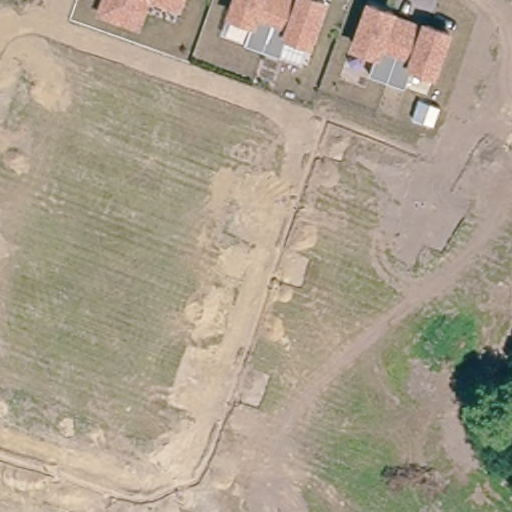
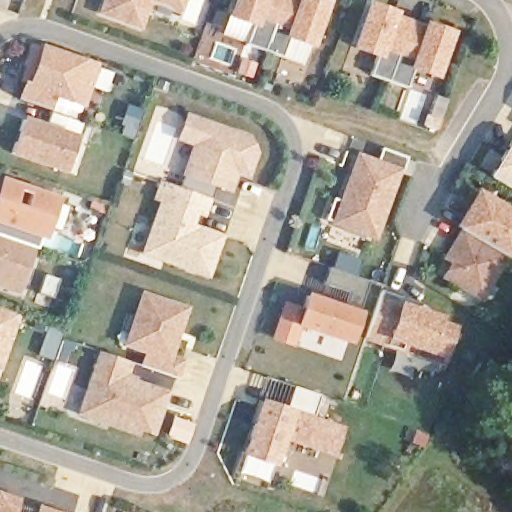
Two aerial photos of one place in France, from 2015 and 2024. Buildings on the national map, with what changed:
unchanged [(150,0),(140,29),(100,16),(106,0),(185,0),(181,10),(167,6),(150,0)]
unchanged [(271,29),(264,49),(224,33),(234,0),(257,0),(250,22),(271,29)]
unchanged [(330,48),(308,41),(302,61),(283,55),(264,49),(271,29),(250,22),(257,0),(326,0),(345,6),(330,48)]
unchanged [(412,16),(430,21),(452,29),(438,72),(417,65),(410,85),(392,79),(372,72),(379,52),(357,45),(372,2),(395,10),(412,16)]
new [(25,83),(30,85),(43,47),(96,65),(82,104),(54,94),(49,110),(20,100),(25,83)]
new [(24,119),(45,127),(50,110),(85,122),(80,139),(74,137),(62,170),(12,152),(24,119)]
new [(195,144),(180,138),(187,116),(249,137),(255,153),(247,175),(236,171),(229,189),(217,185),(212,199),(209,198),(180,188),(195,144)]
new [(512,137),(512,193),(487,177),(512,137)]
new [(342,201),(358,155),(377,162),(382,147),(407,157),(402,172),(398,171),(374,237),(326,219),(331,203),(333,198),(342,201)]
new [(162,200),(156,197),(162,181),(180,188),(209,198),(204,214),(189,209),(184,223),(222,237),(207,275),(144,252),(162,200)]
new [(3,182),(54,200),(37,249),(32,247),(0,236),(0,191),(3,182)]
new [(503,256),(481,301),(441,277),(448,264),(442,259),(455,226),(477,188),(512,210),(512,261),(503,256)]
new [(32,247),(19,286),(17,291),(0,285),(0,236),(32,247)]
new [(285,304),(302,310),(307,295),(344,308),(350,292),(323,283),(329,267),(368,280),(348,341),(298,324),(292,343),(273,337),(285,304)]
new [(401,350),(366,338),(382,290),(403,297),(420,303),(417,310),(438,317),(437,321),(454,328),(444,357),(442,364),(401,350)]
new [(189,307),(173,356),(187,361),(181,379),(141,365),(145,354),(124,348),(142,291),(189,307)]
new [(18,313),(0,366),(0,307),(18,313)]
new [(48,324),(63,329),(52,359),(37,354),(48,324)]
new [(101,351),(130,361),(124,378),(167,393),(153,432),(140,427),(137,433),(108,423),(80,413),(82,405),(101,351)]
new [(270,378),(294,386),(321,395),(312,419),(341,429),(332,453),(283,436),(274,463),(244,453),(262,401),(270,378)]
new [(21,499),(17,512),(0,512),(0,492),(21,499)]
new [(39,504),(61,512),(36,512),(39,504)]

